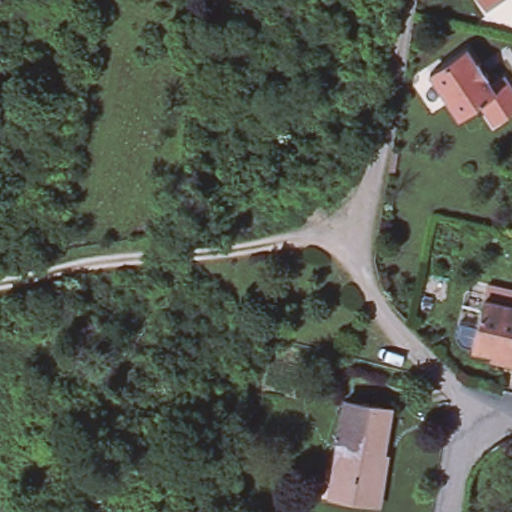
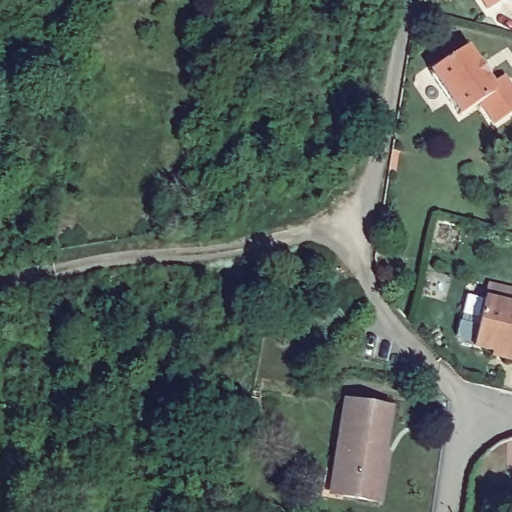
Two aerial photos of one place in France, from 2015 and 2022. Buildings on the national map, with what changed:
unchanged [(481,0),(502,0),(487,10),(481,0)]
unchanged [(466,46),(476,61),(477,60),(487,73),(484,75),(490,84),(494,89),(477,100),(457,114),(429,70),(466,46)]
unchanged [(505,74),(512,86),(512,109),(492,122),(477,100),(494,89),(490,84),(505,74)]
unchanged [(497,350),(476,345),(486,301),(512,307),(512,357),(496,354),(497,350)]
unchanged [(389,408),(382,450),(380,452),(378,468),(382,468),(378,502),(341,495),(344,475),(333,473),(346,401),(389,408)]

